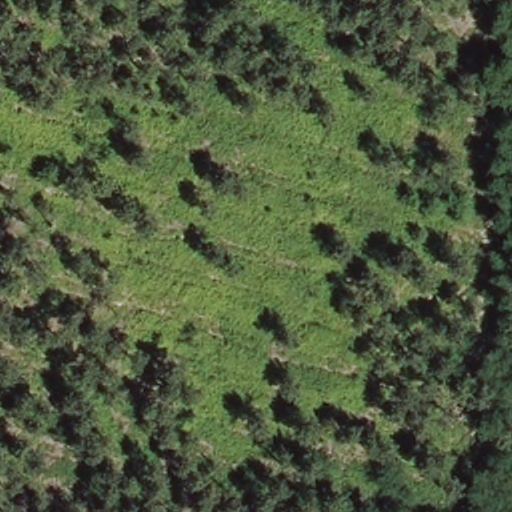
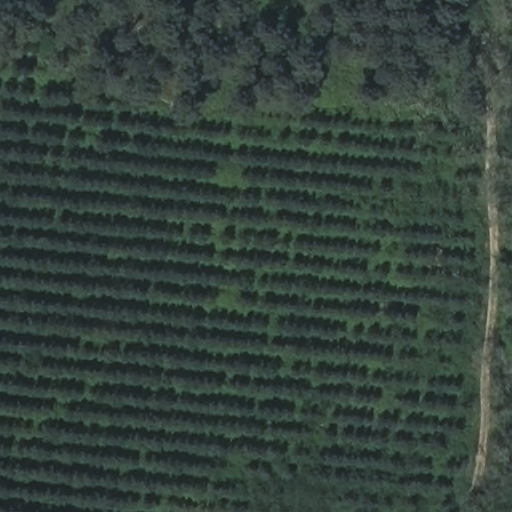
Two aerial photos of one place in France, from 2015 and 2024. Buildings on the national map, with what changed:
[]

